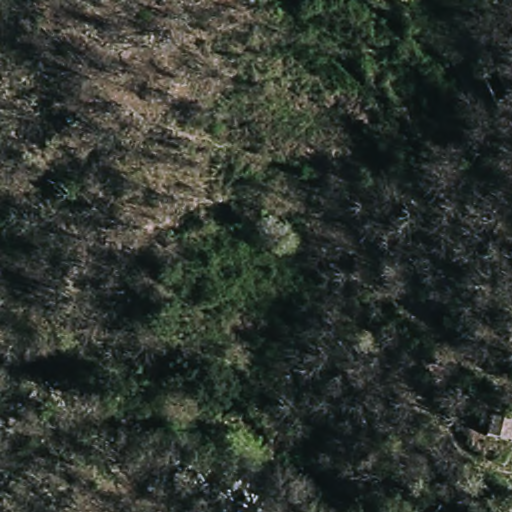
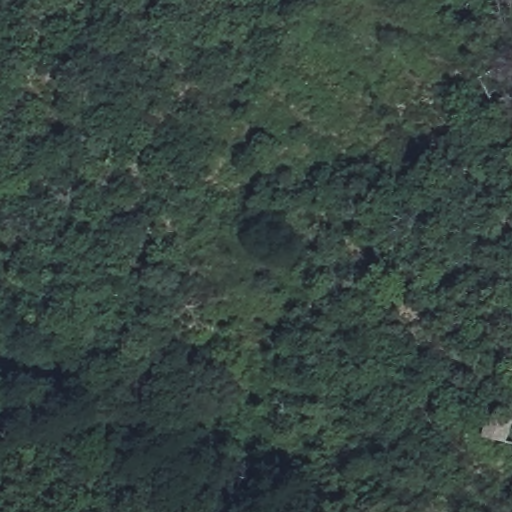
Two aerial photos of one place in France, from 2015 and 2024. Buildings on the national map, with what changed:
unchanged [(478,107),(496,95),(508,114),(489,126),(478,107)]
unchanged [(480,413),(512,419),(512,448),(476,440),(480,413)]

